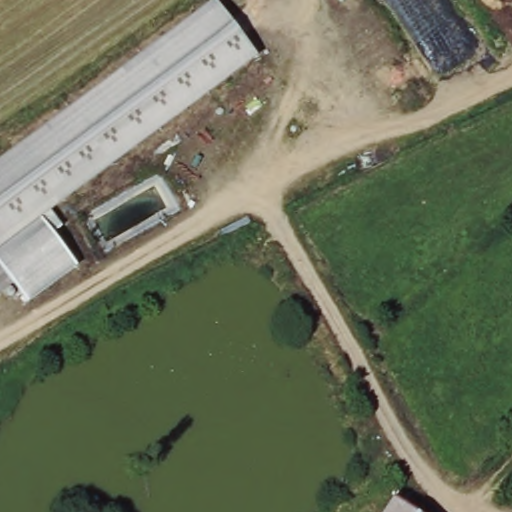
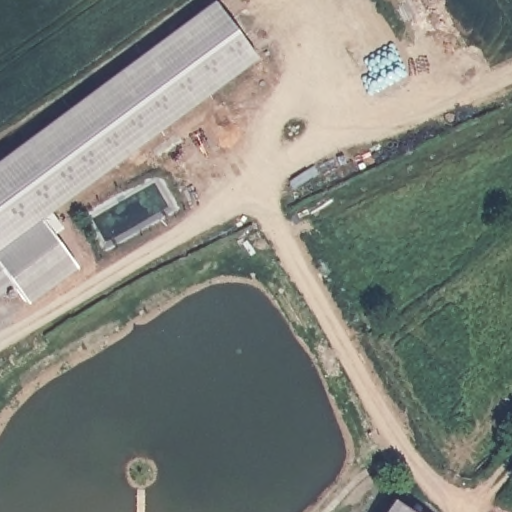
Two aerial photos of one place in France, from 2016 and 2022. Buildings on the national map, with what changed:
unchanged [(255,59),(49,214),(61,230),(52,236),(76,270),(27,303),(12,281),(0,265),(0,161),(210,0),(211,0),(255,59)]
unchanged [(0,291),(0,265),(12,281),(0,291)]
unchanged [(414,512),(389,512),(397,500),(414,512)]

